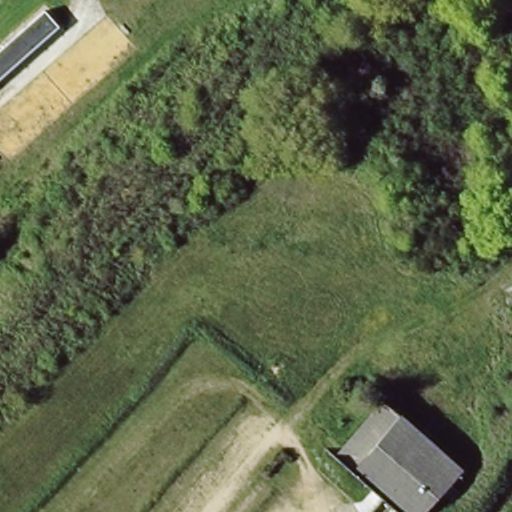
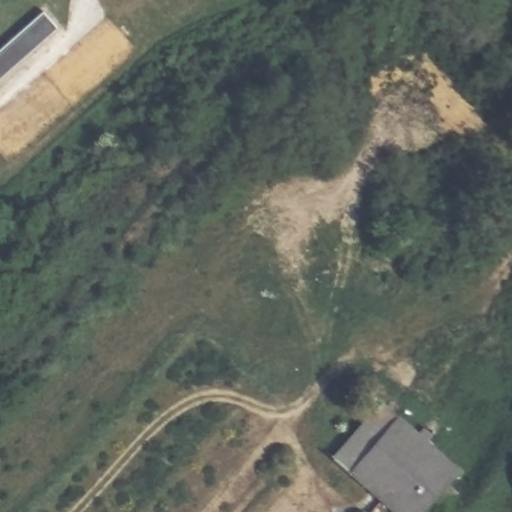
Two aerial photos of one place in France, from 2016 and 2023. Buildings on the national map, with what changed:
unchanged [(59,28),(0,79),(0,51),(44,11),(59,28)]
unchanged [(361,492),(372,480),(337,450),(384,395),(462,462),(452,474),(458,480),(450,490),(444,484),(419,512),(410,512),(384,490),(373,502),(361,492)]

